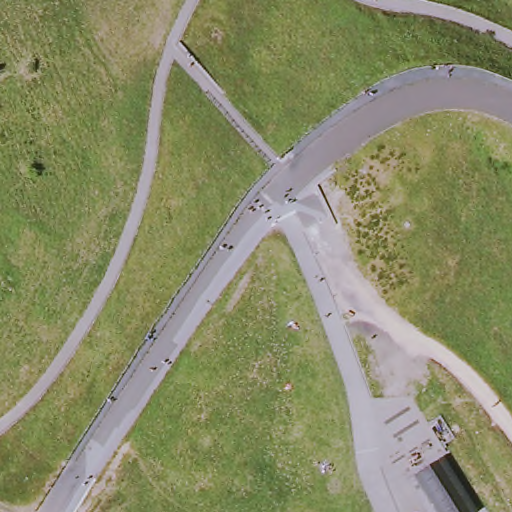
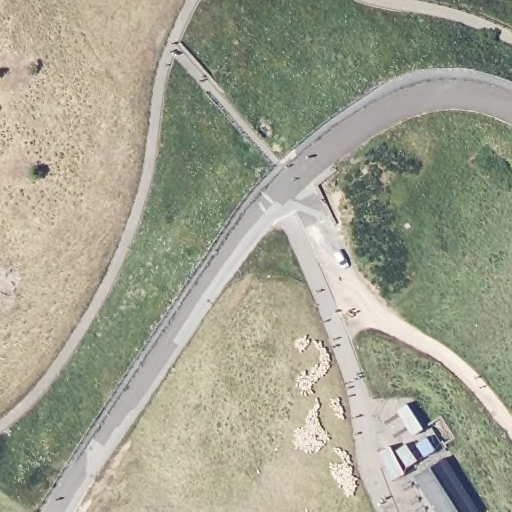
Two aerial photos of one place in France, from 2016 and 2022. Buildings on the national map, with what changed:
unchanged [(438,459),(472,510),(469,512),(433,512),(411,477),(438,459)]
unchanged [(472,512),(472,510),(492,499),(500,512),(472,512)]

